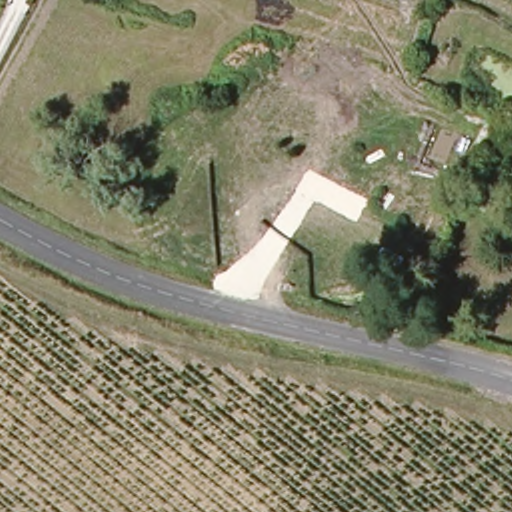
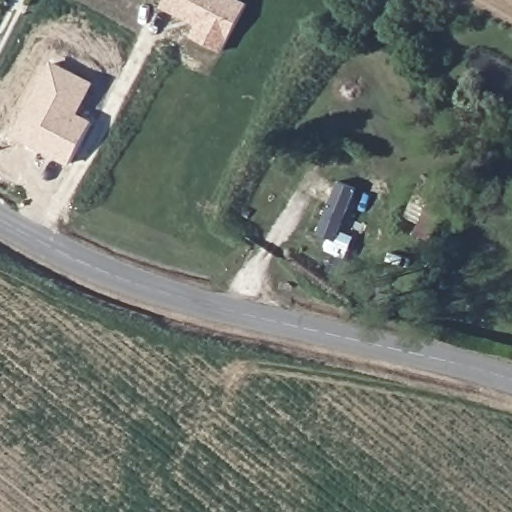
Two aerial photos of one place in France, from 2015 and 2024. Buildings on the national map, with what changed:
new [(190,36),(196,25),(161,7),(165,0),(242,0),(247,3),(220,51),(190,36)]
new [(68,165),(13,136),(52,60),(95,82),(78,113),(92,121),(68,165)]
new [(420,224),(405,216),(424,174),(438,181),(454,189),(430,241),(414,233),(420,224)]
new [(335,241),(318,233),(339,181),(356,189),(335,241)]

